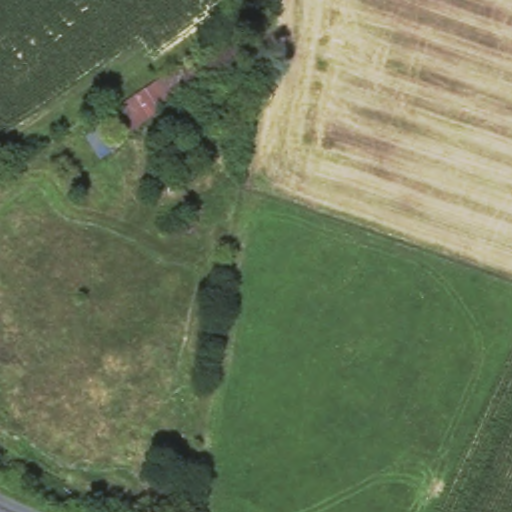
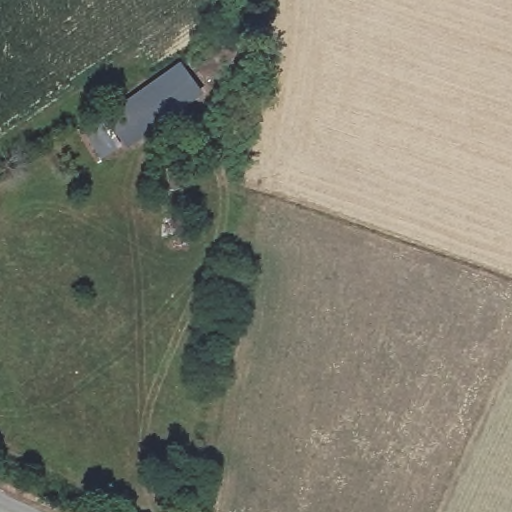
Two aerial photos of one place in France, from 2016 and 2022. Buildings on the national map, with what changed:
unchanged [(249,67),(120,142),(124,151),(100,166),(83,131),(252,23),(249,67)]

